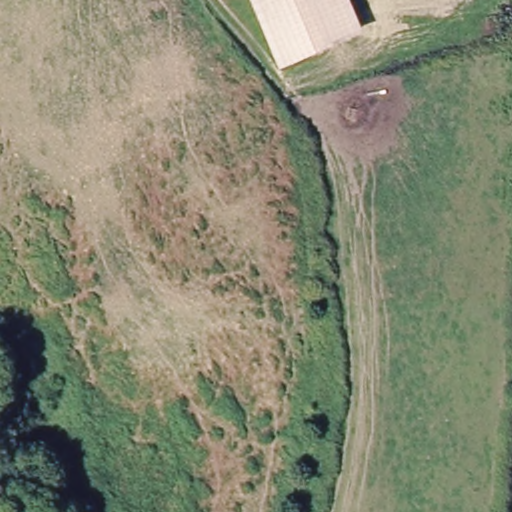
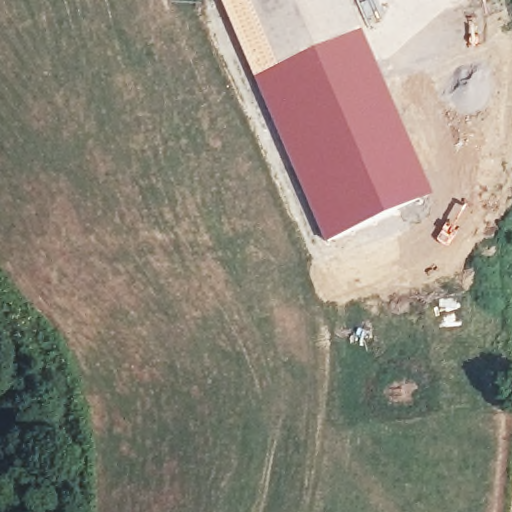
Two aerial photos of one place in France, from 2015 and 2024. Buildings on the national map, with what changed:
new [(433,199),(326,246),(220,0),(253,0),(281,62),(348,32),(362,26),(433,199)]
unchanged [(348,32),(281,62),(253,0),(334,0),(348,32)]
unchanged [(362,26),(348,32),(334,0),(350,0),(362,26)]

